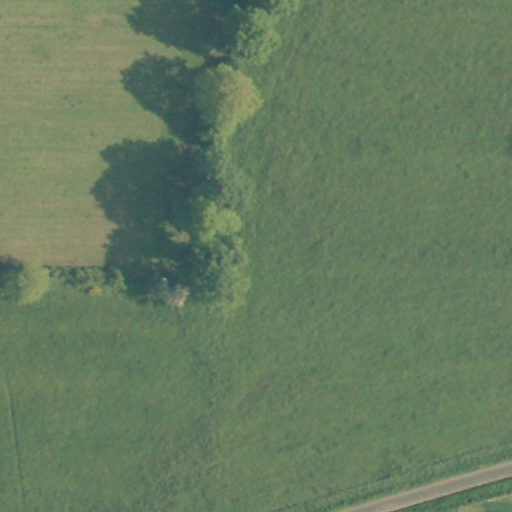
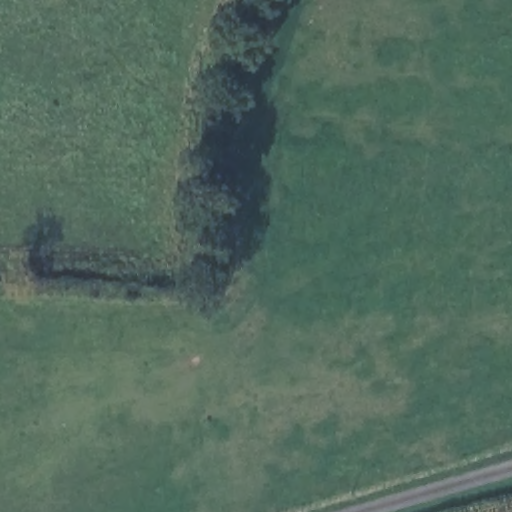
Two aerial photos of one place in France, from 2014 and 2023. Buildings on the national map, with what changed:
[]

